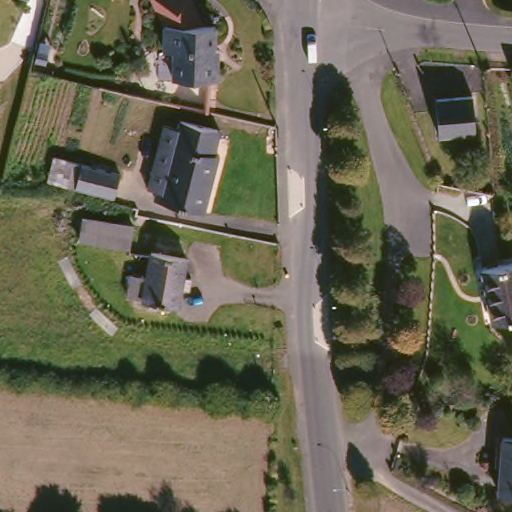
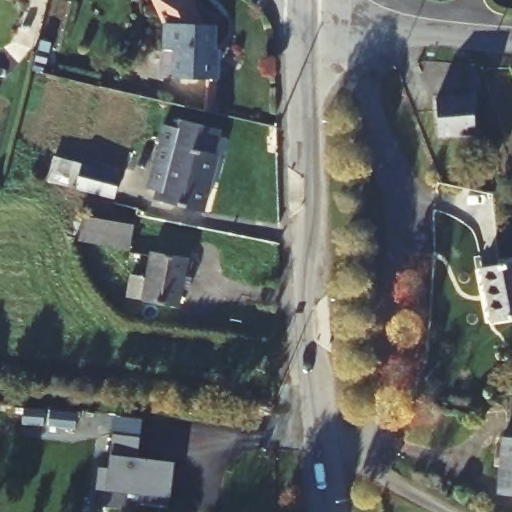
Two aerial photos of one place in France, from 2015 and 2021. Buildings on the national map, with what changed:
unchanged [(166,82),(166,52),(159,52),(159,25),(147,0),(183,0),(196,26),(208,26),(206,79),(166,82)]
unchanged [(468,102),(469,137),(436,139),(433,104),(468,102)]
unchanged [(209,138),(203,160),(213,163),(198,216),(153,204),(156,192),(141,189),(158,126),(209,138)]
unchanged [(60,166),(99,173),(94,197),(56,189),(60,166)]
unchanged [(75,226),(109,227),(109,221),(124,222),(123,252),(74,249),(75,226)]
unchanged [(168,308),(119,297),(124,276),(140,279),(146,256),(181,266),(168,308)]
unchanged [(512,324),(491,330),(479,278),(512,271),(512,324)]
new [(91,468),(101,469),(104,435),(131,437),(129,458),(166,461),(162,503),(129,500),(129,494),(89,490),(91,468)]
unchanged [(512,499),(496,498),(503,442),(512,442),(512,499)]

